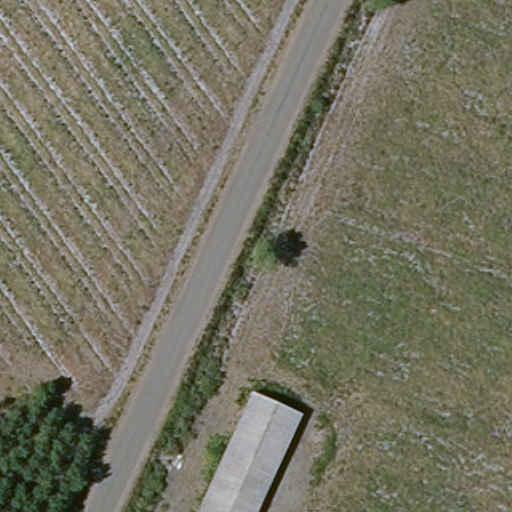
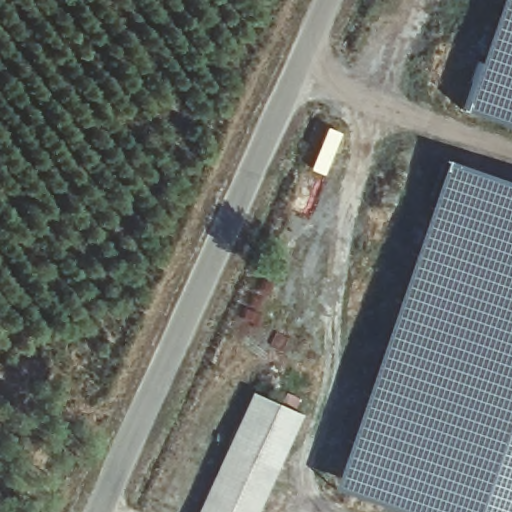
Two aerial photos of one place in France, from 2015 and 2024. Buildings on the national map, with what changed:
new [(498,0),(512,0),(512,126),(461,109),(498,0)]
new [(512,512),(404,512),(330,486),(443,157),(512,182),(512,512)]
new [(301,415),(258,512),(197,512),(251,393),(301,415)]
demolished [(260,512),(229,512),(191,498),(227,408),(293,438),(260,512)]

